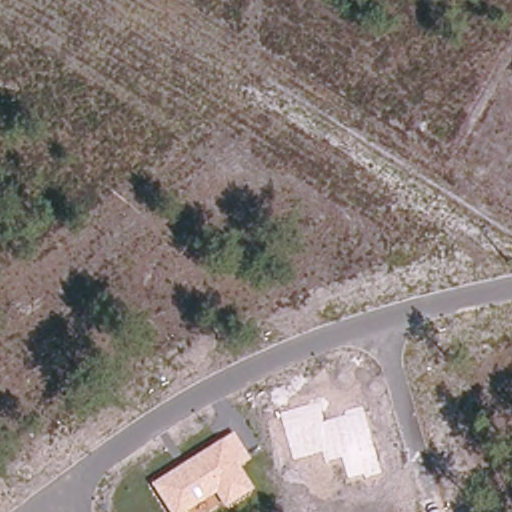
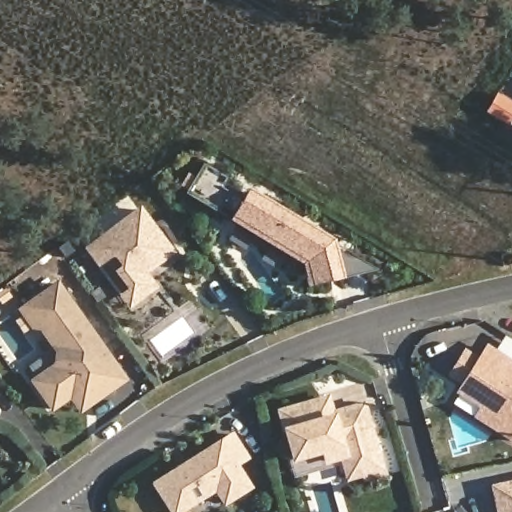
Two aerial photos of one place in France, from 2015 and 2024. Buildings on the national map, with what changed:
new [(512,103),(512,113),(506,123),(484,110),(494,93),(512,103)]
new [(306,284),(298,256),(294,253),(292,257),(232,220),(214,209),(183,190),(186,186),(179,182),(186,171),(193,174),(201,160),(225,175),(283,210),(316,230),(328,237),(333,240),(342,275),(306,284)]
new [(176,253),(148,275),(159,288),(129,310),(84,248),(140,207),(176,253)]
new [(128,381),(80,414),(69,401),(51,414),(29,380),(53,365),(53,351),(39,331),(31,331),(17,310),(58,281),(128,381)]
new [(479,409),(457,394),(462,385),(447,376),(465,348),(478,357),(485,344),(512,361),(512,444),(474,419),(479,409)]
unchanged [(365,477),(363,473),(348,477),(342,455),(326,461),(322,451),(294,459),(281,412),(320,401),(324,420),(345,415),(344,411),(362,406),(381,472),(365,477)]
unchanged [(253,489),(224,507),(215,493),(184,512),(169,512),(151,483),(221,439),(234,431),(250,459),(239,465),(253,489)]
new [(512,481),(512,512),(496,512),(491,485),(512,481)]

